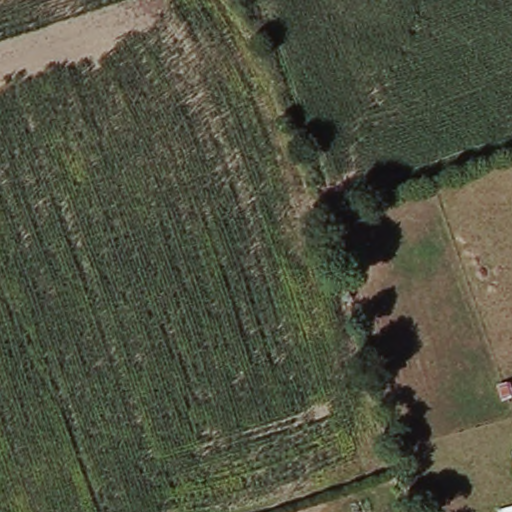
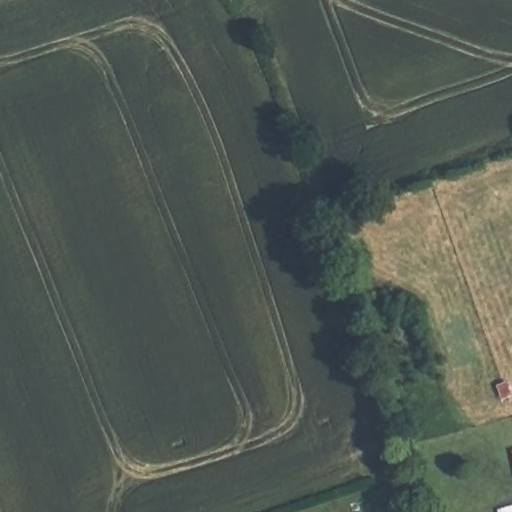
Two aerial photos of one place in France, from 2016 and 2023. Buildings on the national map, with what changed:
unchanged [(512,508),(512,512),(502,512),(502,510),(512,508)]

